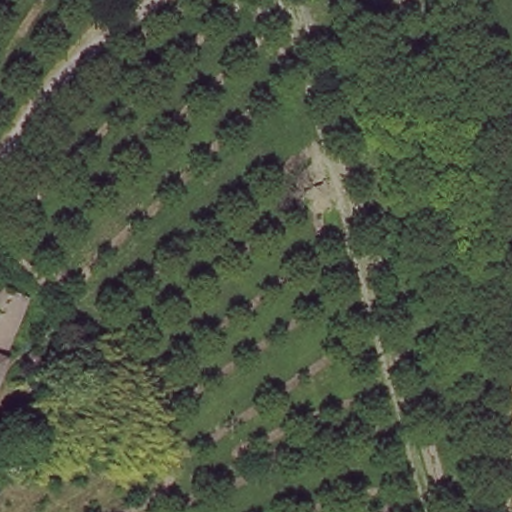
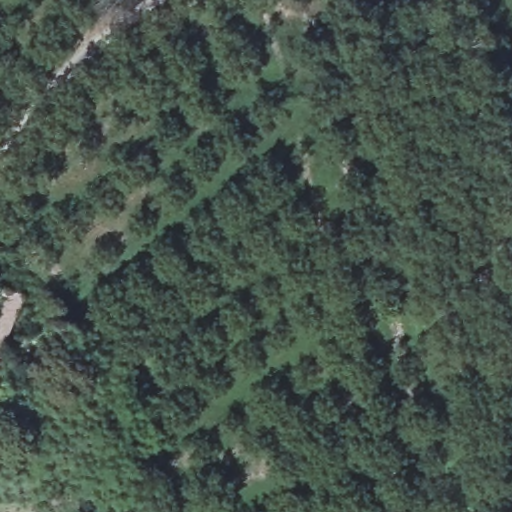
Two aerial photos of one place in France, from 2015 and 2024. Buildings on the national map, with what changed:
unchanged [(26,305),(0,362),(0,298),(2,294),(26,305)]

